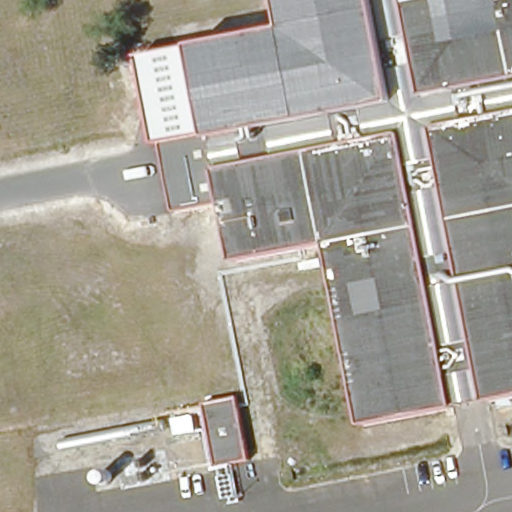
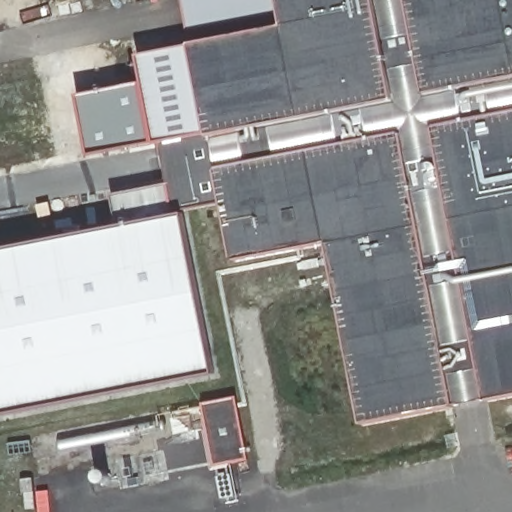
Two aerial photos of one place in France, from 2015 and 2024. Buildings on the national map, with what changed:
new [(200,42),(188,0),(279,0),(284,26),(200,42)]
unchanged [(279,0),(512,0),(512,398),(362,428),(321,243),(240,260),(239,257),(229,202),(225,179),(218,140),(200,42),(284,26),(279,0)]
new [(113,195),(169,183),(157,142),(140,57),(200,42),(218,140),(225,179),(229,202),(185,212),(216,374),(2,415),(0,405),(0,250),(119,227),(113,195)]
new [(157,142),(89,156),(77,96),(145,82),(157,142)]
unchanged [(242,402),(253,457),(222,463),(211,408),(242,402)]
unchanged [(153,418),(153,413),(191,407),(197,438),(171,442),(168,430),(58,449),(57,440),(153,418)]

